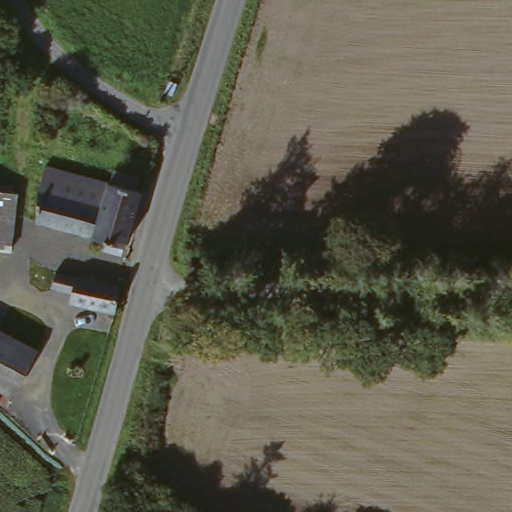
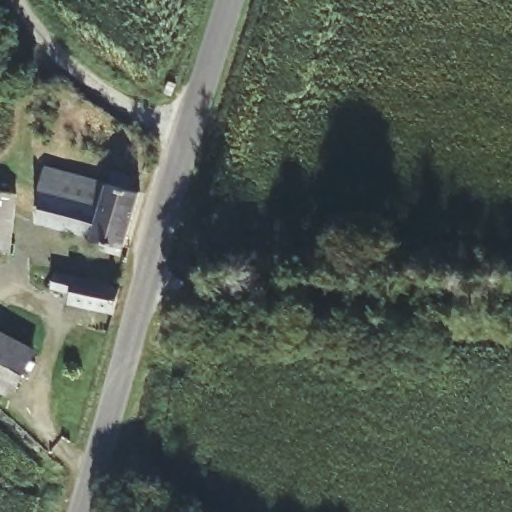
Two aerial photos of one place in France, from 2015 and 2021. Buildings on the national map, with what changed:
unchanged [(9,82),(0,75),(0,42),(22,64),(9,82)]
unchanged [(34,200),(37,177),(104,191),(108,171),(134,175),(130,197),(136,198),(124,251),(36,232),(34,200)]
unchanged [(11,197),(6,254),(0,254),(0,197),(11,197)]
unchanged [(111,320),(69,313),(71,302),(50,298),(51,278),(57,280),(79,288),(119,292),(111,320)]
unchanged [(29,352),(12,394),(0,388),(0,336),(29,352)]

